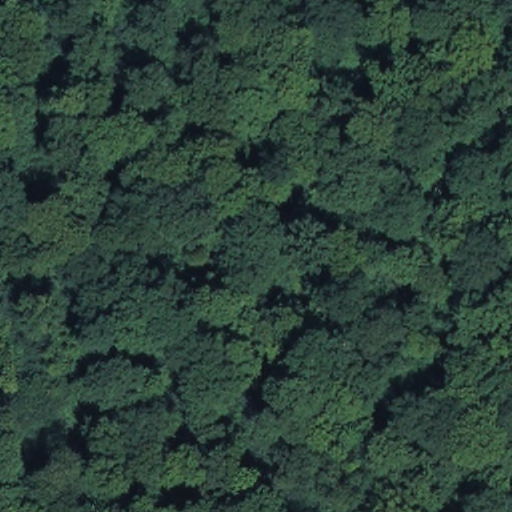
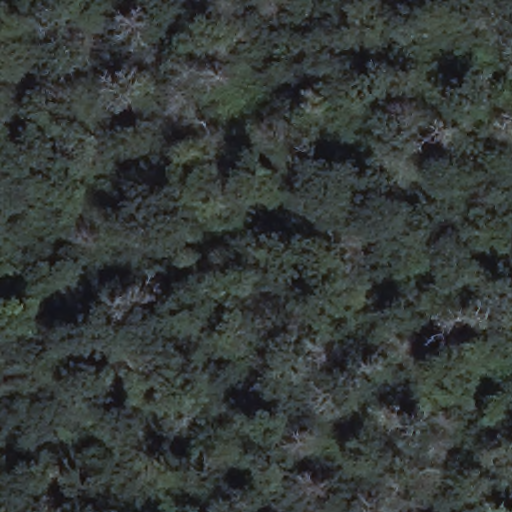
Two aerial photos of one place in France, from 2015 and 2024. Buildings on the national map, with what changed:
[]

